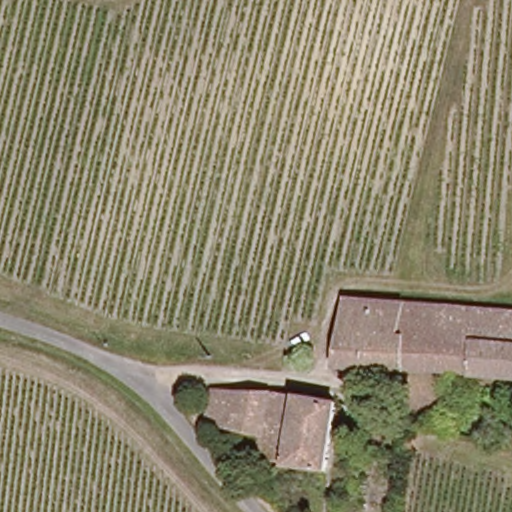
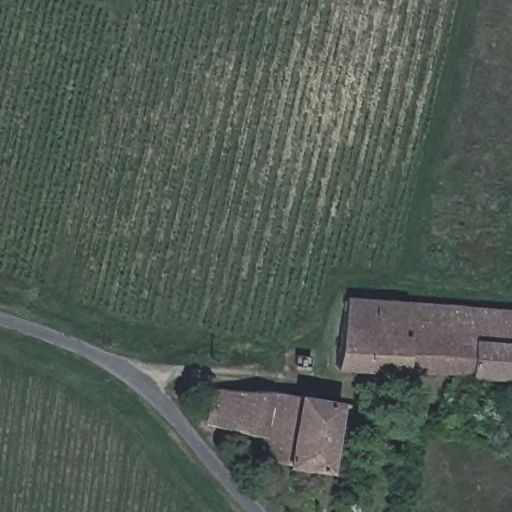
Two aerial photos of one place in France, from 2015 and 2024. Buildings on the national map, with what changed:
unchanged [(512,312),(512,379),(431,372),(331,369),(342,300),(512,312)]
unchanged [(267,387),(330,398),(319,466),(255,454),(257,439),(247,438),(249,429),(204,422),(211,385),(267,387)]

